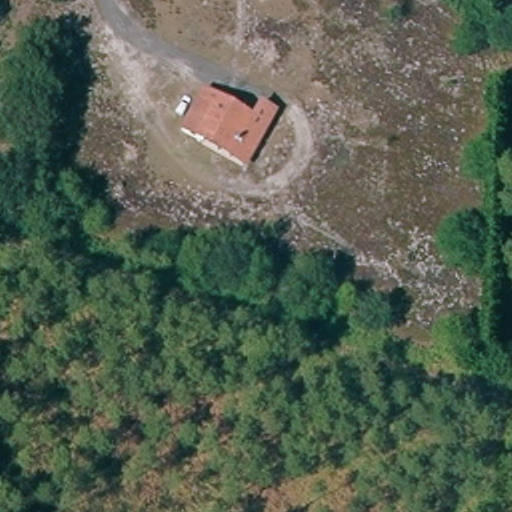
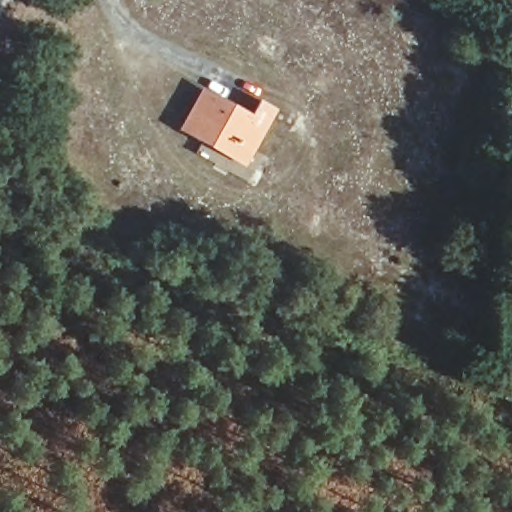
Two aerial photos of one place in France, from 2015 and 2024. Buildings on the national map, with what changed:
unchanged [(234,137),(230,145),(211,135),(202,147),(181,134),(205,90),(244,113),(254,96),(277,112),(256,150),(234,137)]

